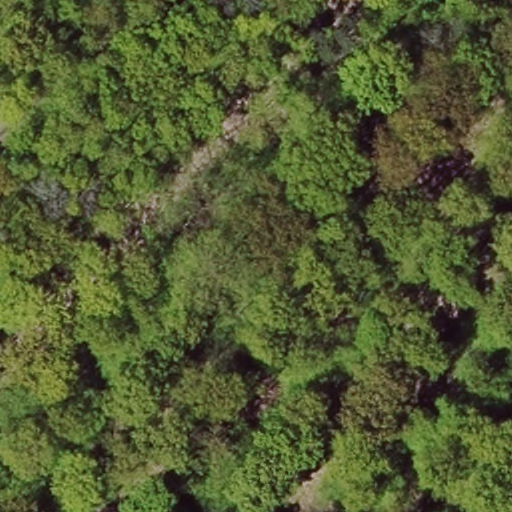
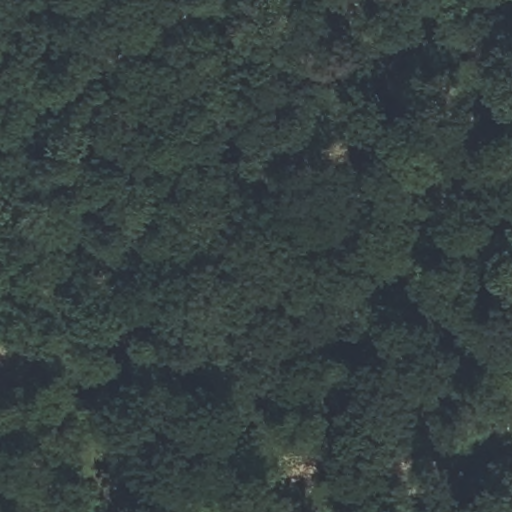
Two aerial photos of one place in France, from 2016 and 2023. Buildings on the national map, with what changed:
[]

